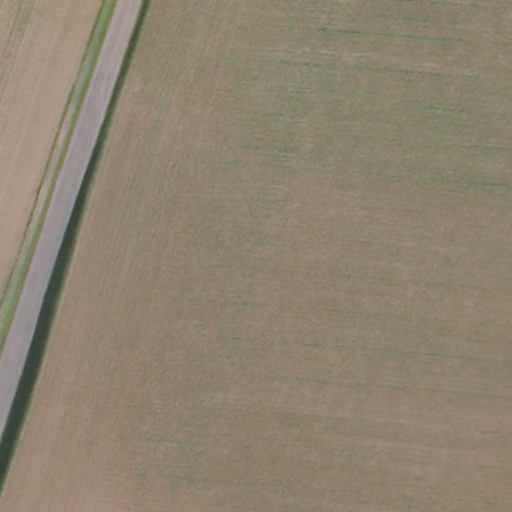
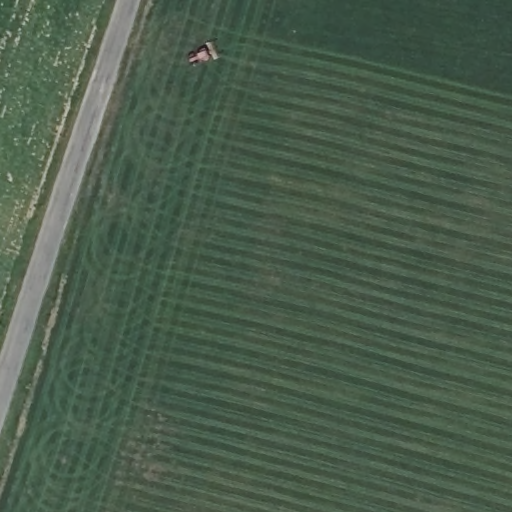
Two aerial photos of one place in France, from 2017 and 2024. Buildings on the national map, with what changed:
[]

